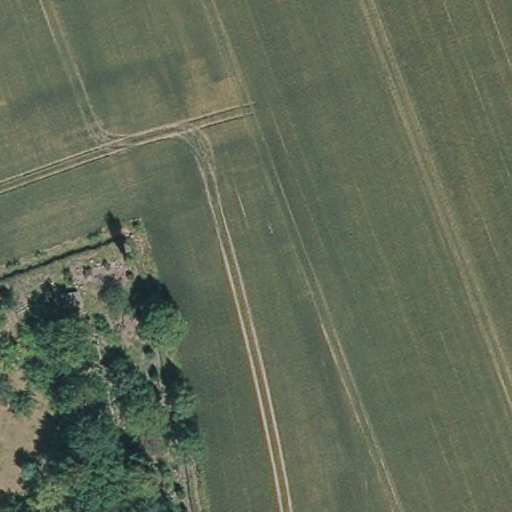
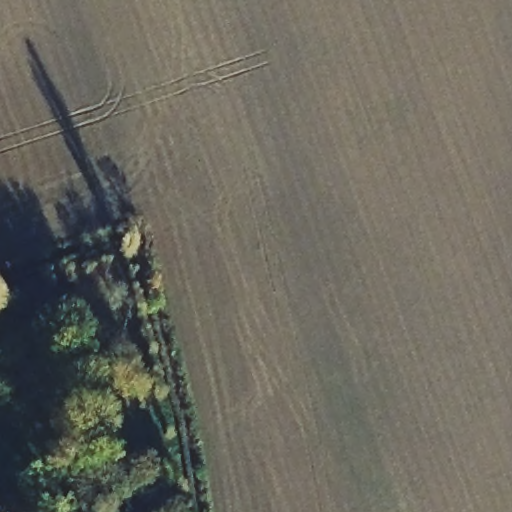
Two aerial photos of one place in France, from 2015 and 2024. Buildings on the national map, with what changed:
[]

